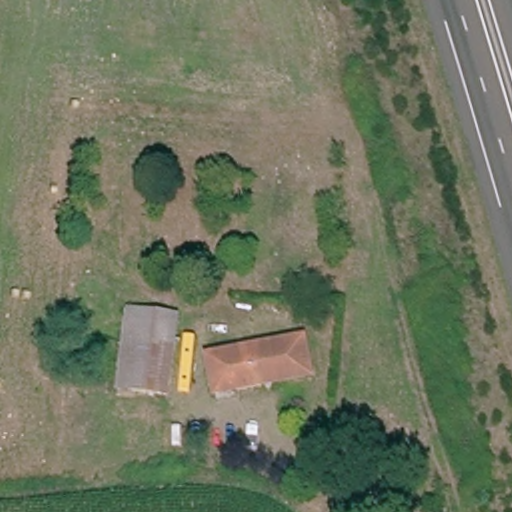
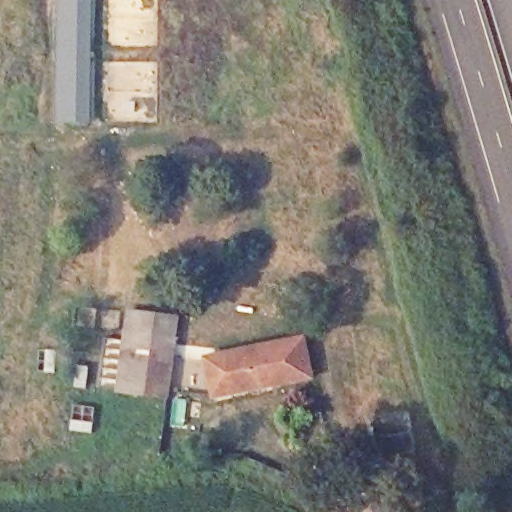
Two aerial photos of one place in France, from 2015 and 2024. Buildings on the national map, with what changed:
new [(95,125),(61,124),(61,0),(95,0),(95,125)]
unchanged [(130,311),(179,318),(169,397),(120,390),(130,311)]
unchanged [(209,358),(305,339),(313,377),(217,396),(209,358)]

